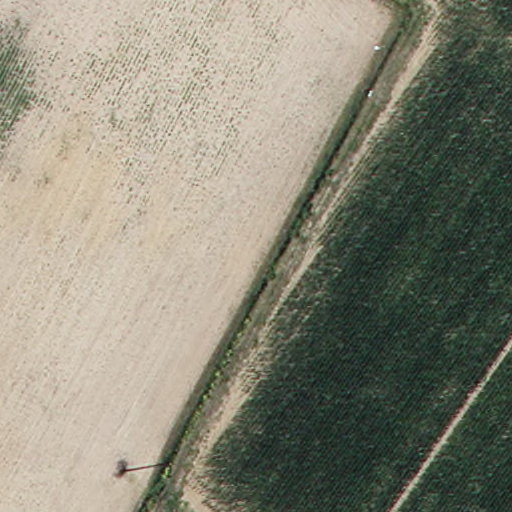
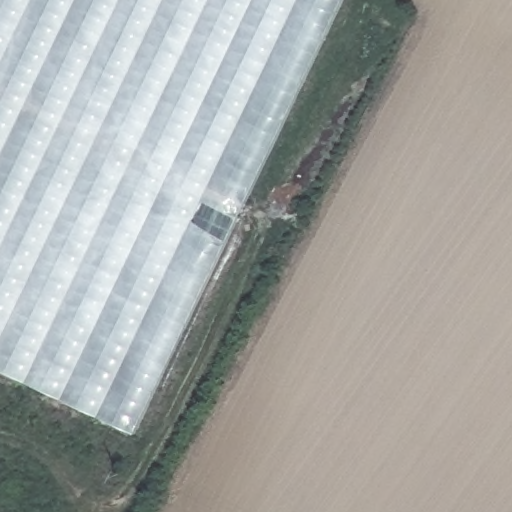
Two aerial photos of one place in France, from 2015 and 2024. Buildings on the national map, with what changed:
new [(134,433),(0,368),(0,0),(345,0),(134,433)]

